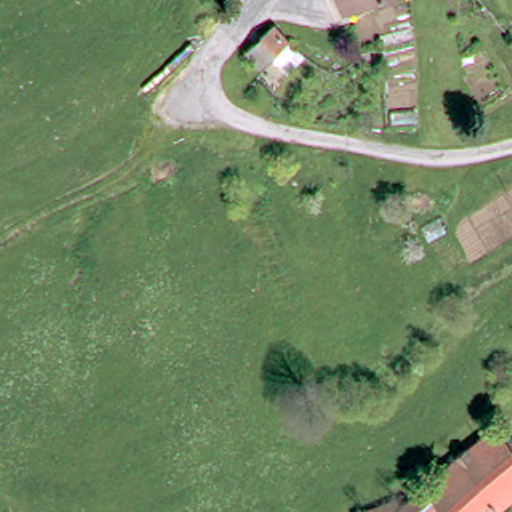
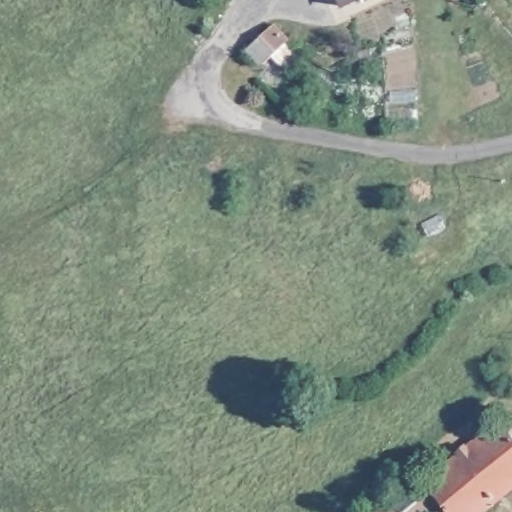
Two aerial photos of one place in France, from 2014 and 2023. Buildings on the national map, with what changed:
unchanged [(340,0),(378,0),(347,14),(340,0)]
unchanged [(247,52),(264,37),(275,27),(287,42),(259,65),(247,52)]
unchanged [(505,421),(512,431),(512,498),(494,512),(450,512),(444,504),(427,481),(505,421)]
unchanged [(405,512),(399,500),(404,499),(427,481),(444,504),(433,512),(405,512)]
unchanged [(399,500),(405,512),(358,512),(355,505),(399,500)]

